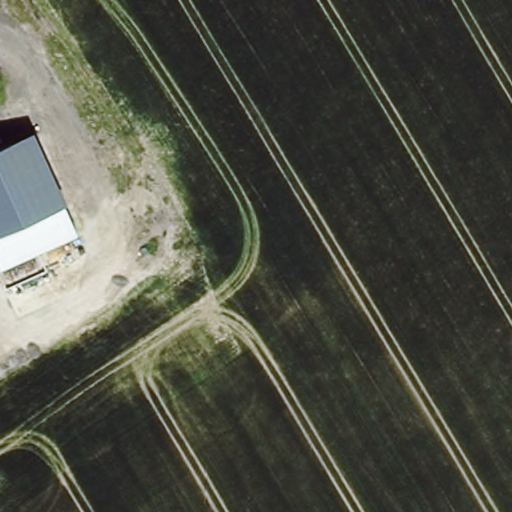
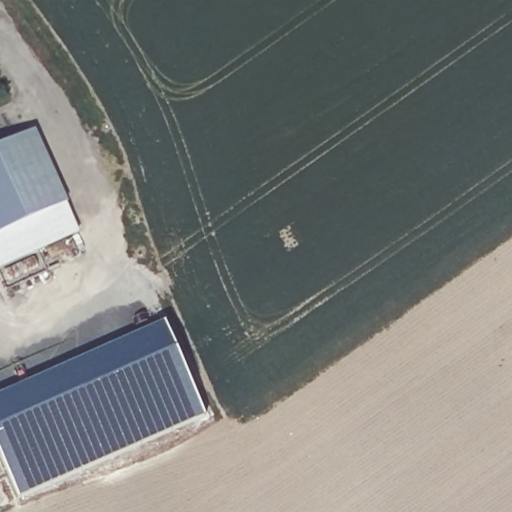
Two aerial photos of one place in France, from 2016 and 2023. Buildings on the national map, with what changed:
unchanged [(0,146),(31,131),(65,201),(0,232),(0,146)]
unchanged [(0,265),(0,232),(65,201),(79,231),(1,267),(0,265)]
new [(203,417),(20,498),(0,454),(0,398),(162,325),(203,417)]

